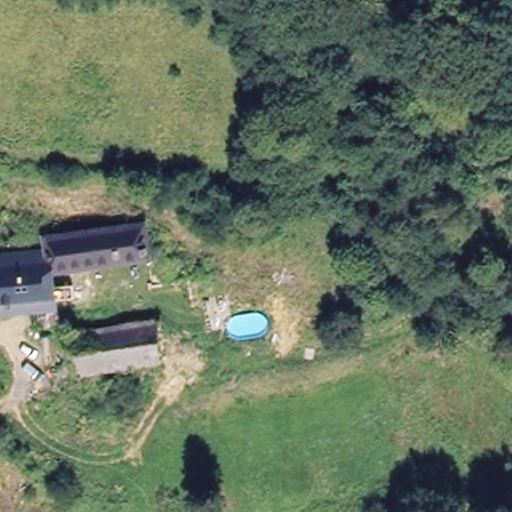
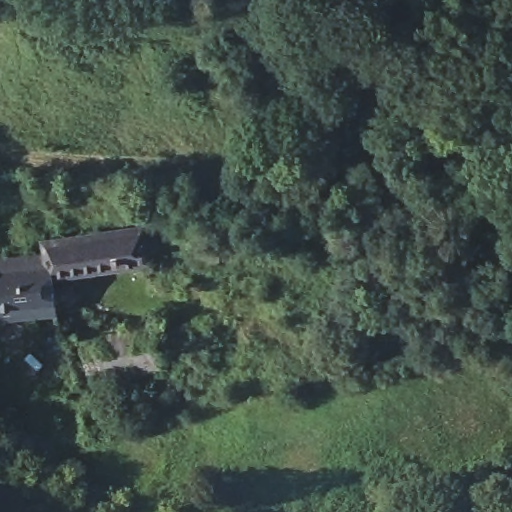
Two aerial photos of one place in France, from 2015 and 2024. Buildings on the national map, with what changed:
unchanged [(52,273),(53,304),(0,307),(0,260),(51,258),(48,237),(146,223),(149,247),(156,247),(160,256),(148,258),(52,273)]
unchanged [(191,279),(195,301),(157,308),(154,283),(191,279)]
unchanged [(82,371),(67,330),(158,322),(163,361),(82,371)]

